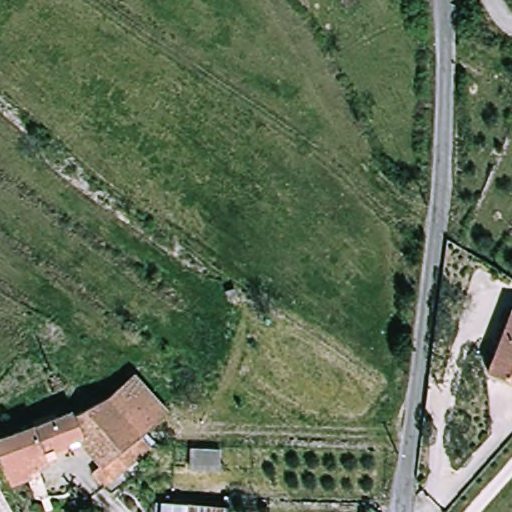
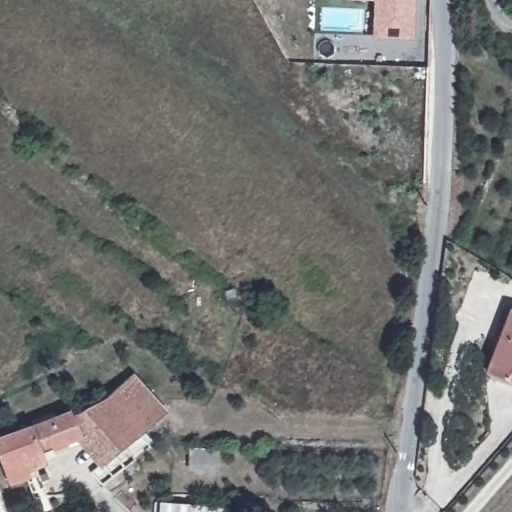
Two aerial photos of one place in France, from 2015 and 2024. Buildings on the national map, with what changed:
new [(415,40),(372,38),(373,0),(416,0),(415,40)]
unchanged [(510,309),(512,310),(512,380),(487,370),(510,309)]
unchanged [(111,396),(136,373),(170,411),(145,434),(142,432),(111,396)]
unchanged [(105,464),(80,437),(87,434),(78,413),(111,396),(142,432),(105,464)]
unchanged [(78,413),(87,434),(80,437),(47,450),(50,460),(40,464),(50,491),(47,493),(42,495),(37,495),(30,476),(13,482),(0,449),(0,440),(76,409),(78,413)]
unchanged [(105,464),(142,432),(145,434),(153,445),(106,485),(95,472),(105,464)]
unchanged [(189,467),(189,461),(190,447),(217,448),(217,462),(217,468),(189,467)]
unchanged [(6,512),(0,512),(0,500),(6,512)]
unchanged [(226,507),(226,512),(159,512),(160,503),(226,507)]

